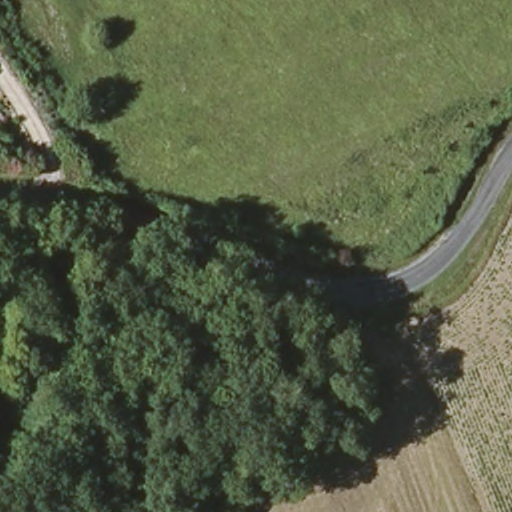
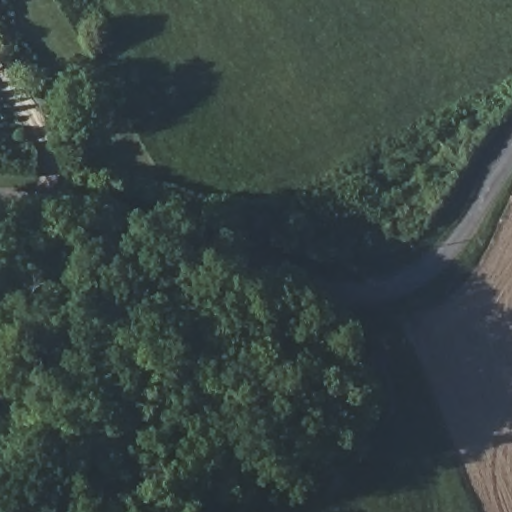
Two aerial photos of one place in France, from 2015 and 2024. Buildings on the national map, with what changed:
[]

